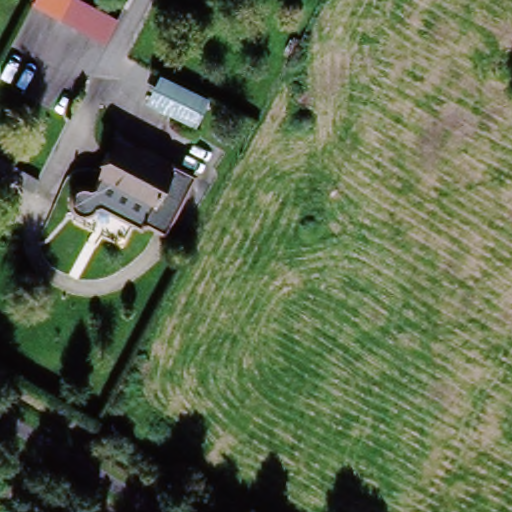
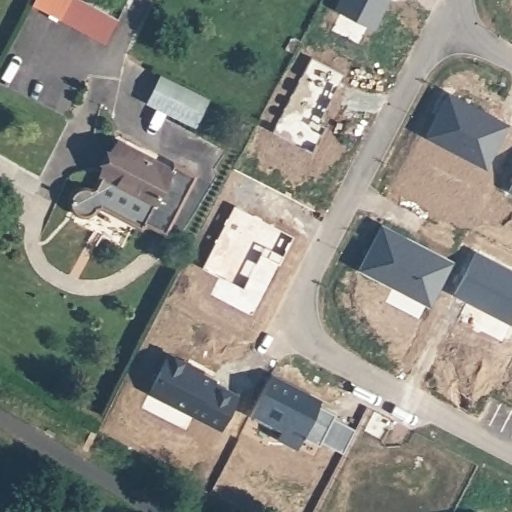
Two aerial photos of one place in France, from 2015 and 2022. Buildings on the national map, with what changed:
unchanged [(33,3),(34,0),(84,0),(118,17),(106,40),(33,3)]
new [(314,56),(346,73),(326,114),(321,121),(329,125),(316,151),(275,130),(314,56)]
unchanged [(191,125),(146,103),(159,76),(203,99),(191,125)]
new [(452,93),(511,124),(488,166),(429,136),(452,93)]
unchanged [(118,140),(173,168),(156,203),(100,175),(118,140)]
unchanged [(0,168),(0,153),(40,175),(34,187),(0,168)]
unchanged [(176,163),(195,173),(168,230),(146,219),(144,222),(90,194),(100,175),(156,203),(173,168),(176,163)]
new [(238,202),(299,233),(288,254),(269,245),(266,252),(248,286),(206,265),(238,202)]
new [(386,224),(408,236),(406,240),(433,255),(436,251),(456,261),(434,304),(363,266),(386,224)]
new [(478,251),(512,268),(512,321),(457,292),(478,251)]
new [(174,349),(193,358),(191,361),(206,369),(219,375),(218,378),(243,390),(226,423),(155,387),(174,349)]
new [(273,375),(339,410),(336,414),(359,425),(346,449),(324,438),(322,442),(304,432),(302,434),(281,433),(284,428),(253,412),(273,375)]

